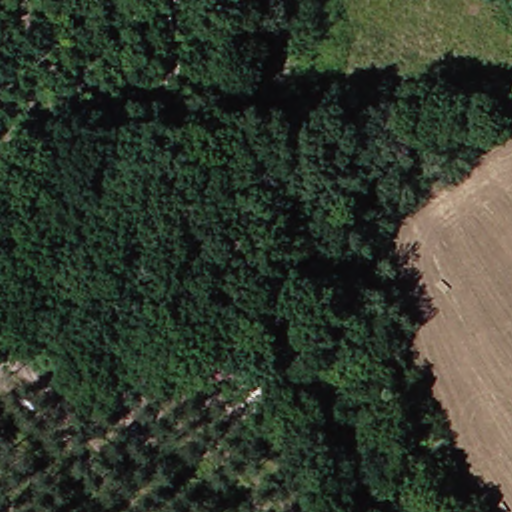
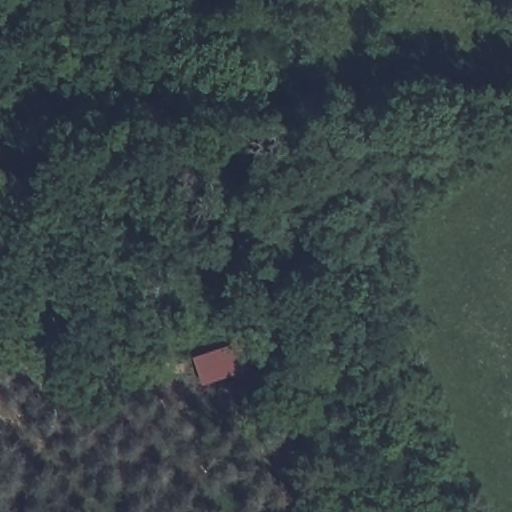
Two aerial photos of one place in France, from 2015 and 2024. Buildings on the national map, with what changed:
new [(206,384),(196,356),(244,340),(253,368),(206,384)]

